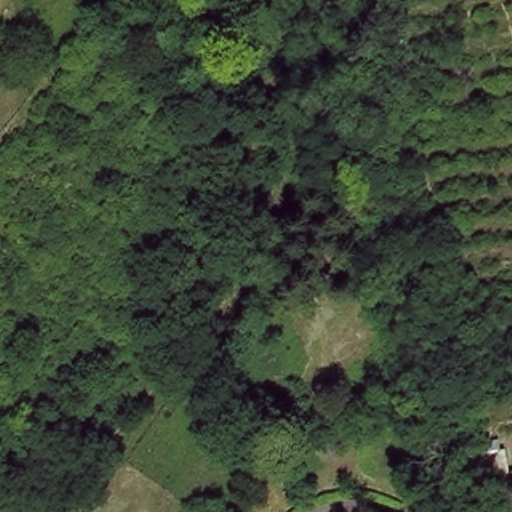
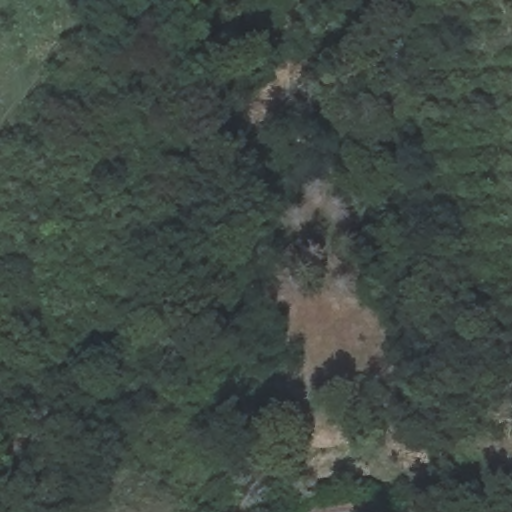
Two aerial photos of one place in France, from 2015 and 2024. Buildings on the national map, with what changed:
unchanged [(474,442),(494,436),(497,446),(506,445),(510,469),(512,469),(512,483),(483,486),(474,442)]

